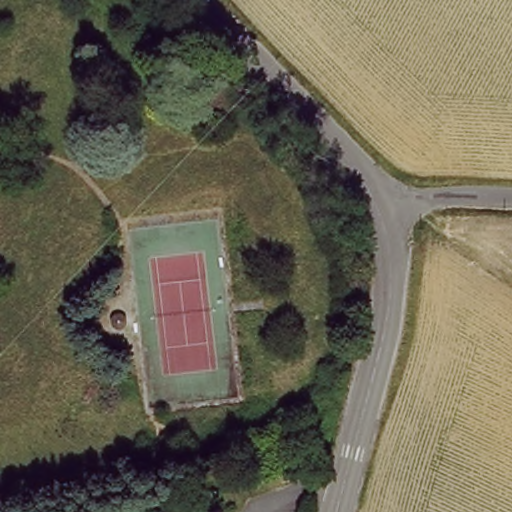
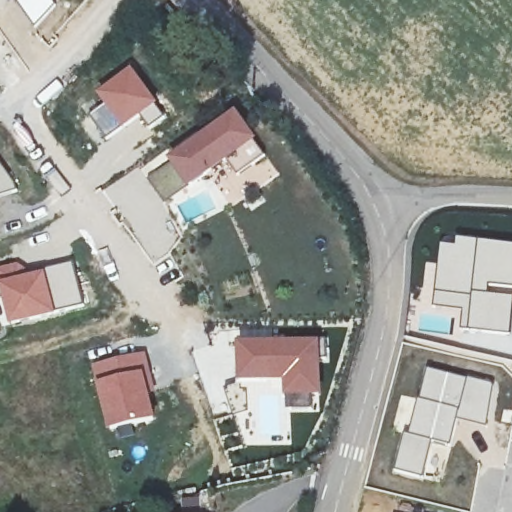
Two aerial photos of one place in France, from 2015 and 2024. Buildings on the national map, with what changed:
new [(35,28),(15,1),(16,0),(54,0),(58,6),(35,28)]
new [(104,105),(98,95),(132,69),(165,117),(148,129),(140,118),(105,141),(88,117),(104,105)]
new [(236,111),(258,144),(185,191),(167,162),(236,111)]
new [(0,197),(0,166),(17,191),(0,197)]
new [(441,244),(455,246),(456,238),(512,245),(512,338),(459,332),(462,312),(432,307),(441,244)]
new [(28,275),(72,261),(86,307),(8,327),(0,294),(0,268),(18,263),(28,275)]
new [(240,343),(321,338),(324,363),(321,363),(322,396),(314,397),(314,410),(284,411),(282,384),(239,385),(240,343)]
new [(144,351),(151,378),(157,421),(106,432),(90,365),(144,351)]
new [(427,369),(468,378),(458,421),(451,448),(433,444),(407,435),(427,369)]
new [(468,378),(495,384),(488,427),(458,421),(468,378)]
new [(403,434),(407,435),(433,444),(424,479),(393,472),(403,434)]

